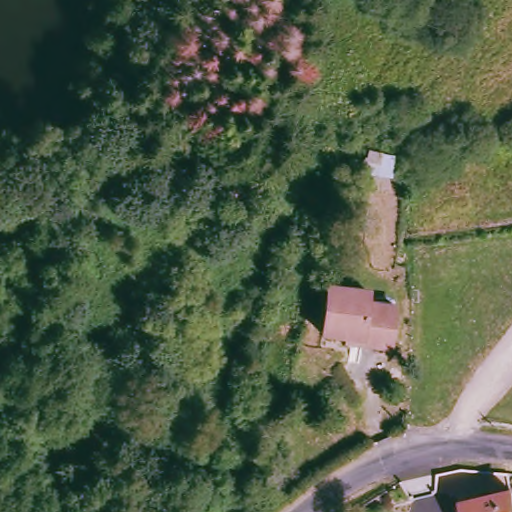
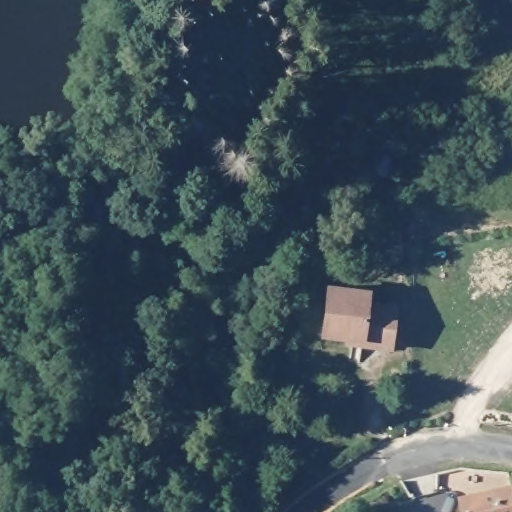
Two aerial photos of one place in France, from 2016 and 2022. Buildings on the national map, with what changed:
unchanged [(342,348),(343,341),(319,336),(330,287),(367,295),(364,309),(393,315),(388,350),(386,357),(342,348)]
unchanged [(465,500),(512,488),(512,512),(467,512),(465,500)]

